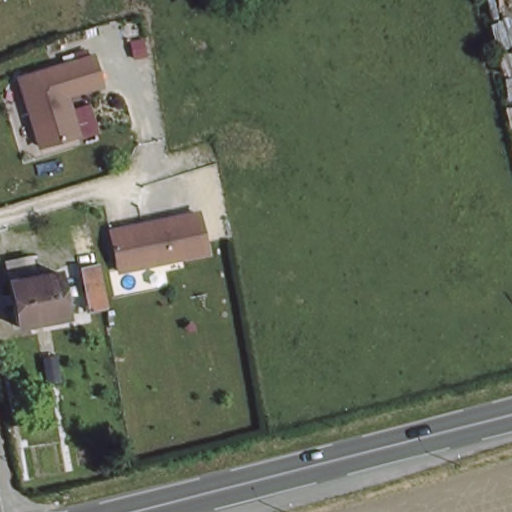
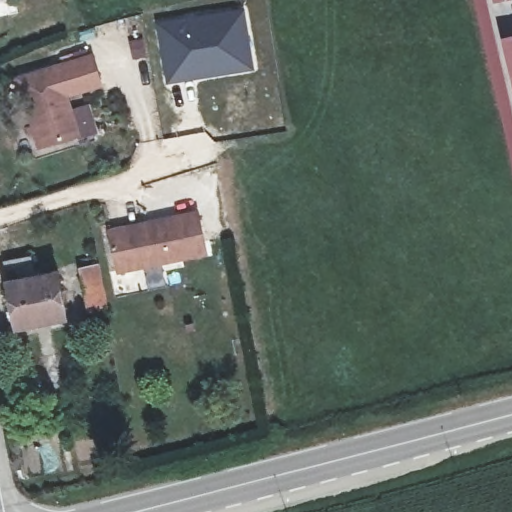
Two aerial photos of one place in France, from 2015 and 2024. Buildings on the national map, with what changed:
new [(246,5),(257,71),(165,85),(154,18),(246,5)]
unchanged [(105,86),(70,97),(65,68),(97,58),(105,86)]
unchanged [(82,137),(78,138),(45,148),(24,80),(65,68),(70,97),(66,98),(71,112),(73,111),(74,111),(82,137)]
unchanged [(210,250),(123,268),(115,229),(202,210),(210,250)]
unchanged [(28,263),(30,274),(42,271),(44,282),(57,280),(65,319),(16,329),(4,268),(28,263)]
unchanged [(78,275),(97,271),(104,311),(88,314),(78,275)]

